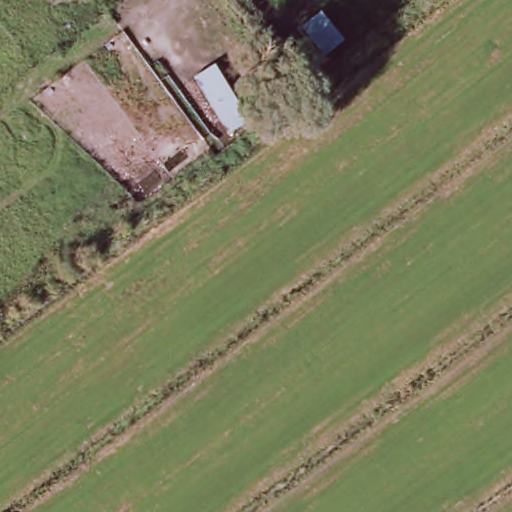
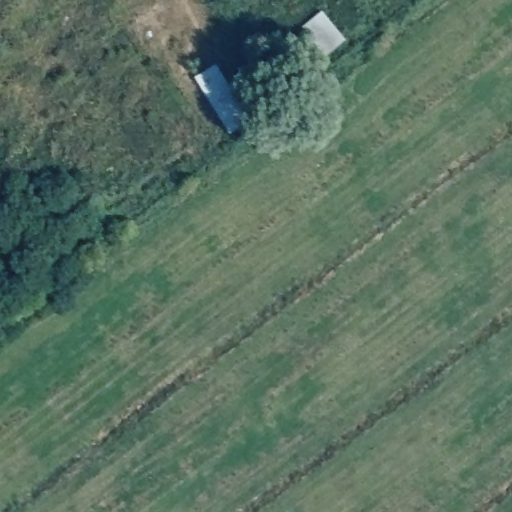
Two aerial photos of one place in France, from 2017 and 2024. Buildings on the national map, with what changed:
unchanged [(346,42),(328,58),(303,31),(321,16),(346,42)]
unchanged [(251,122),(231,134),(194,84),(216,70),(251,122)]

